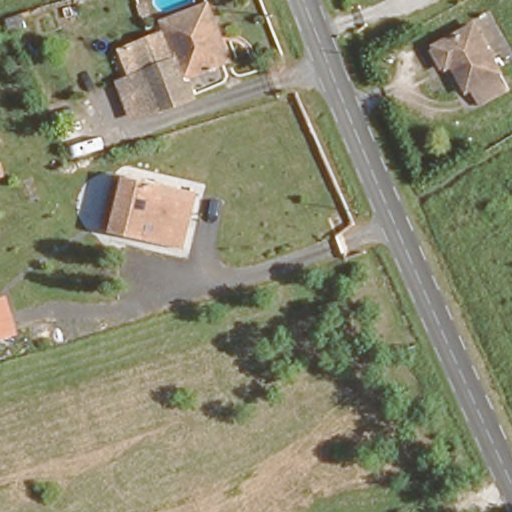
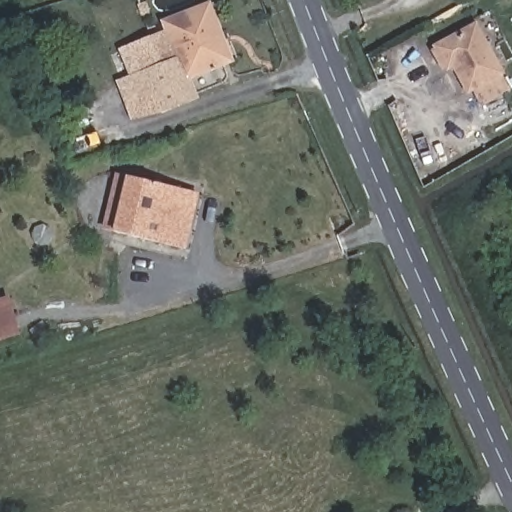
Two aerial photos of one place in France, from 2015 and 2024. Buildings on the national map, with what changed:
unchanged [(123,84),(141,77),(142,77),(133,52),(167,39),(162,27),(209,11),(219,38),(229,68),(215,73),(184,84),(190,102),(155,115),(137,122),(123,84)]
unchanged [(469,103),(455,78),(445,83),(431,59),(475,32),(502,84),(469,103)]
unchanged [(196,191),(183,247),(98,228),(112,172),(196,191)]
unchanged [(19,336),(0,341),(0,298),(7,295),(19,336)]

